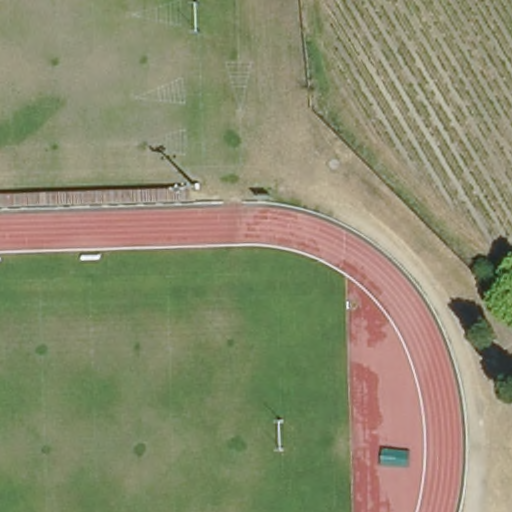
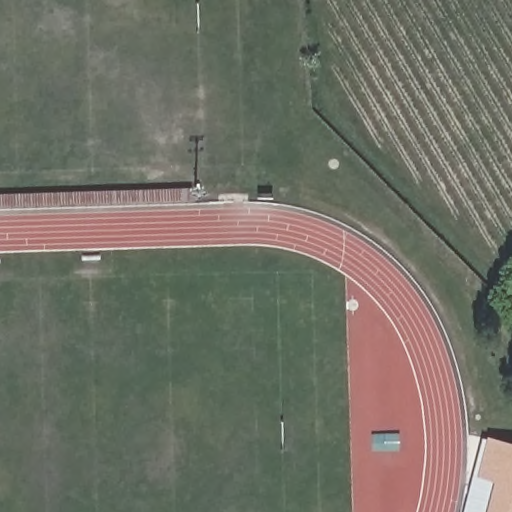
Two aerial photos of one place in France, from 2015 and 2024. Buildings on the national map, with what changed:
unchanged [(0,202),(0,191),(190,184),(191,195),(0,202)]
new [(512,512),(486,512),(494,480),(477,475),(487,436),(512,442),(512,512)]

